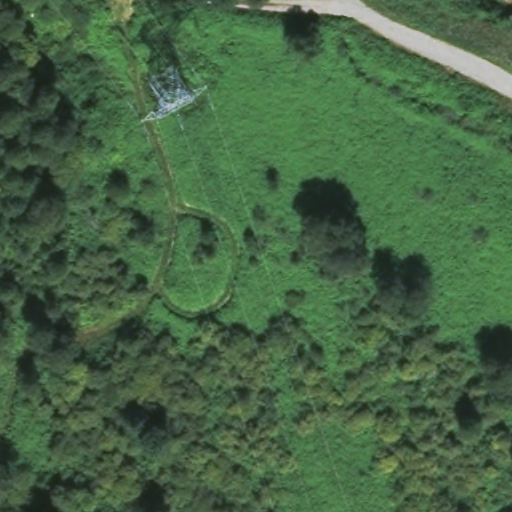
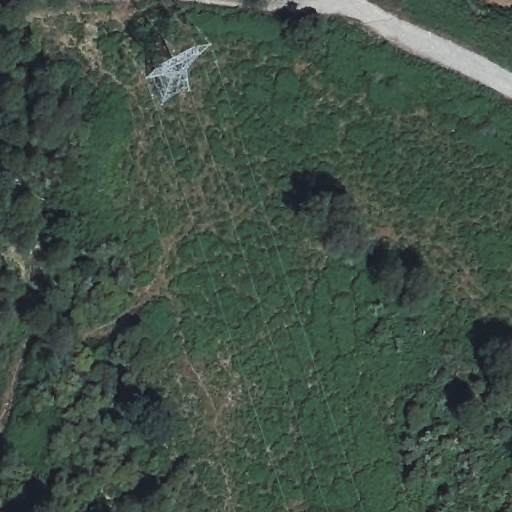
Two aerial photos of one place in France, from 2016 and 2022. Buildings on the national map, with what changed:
unchanged [(491,0),(512,0),(512,11),(510,13),(491,0)]

